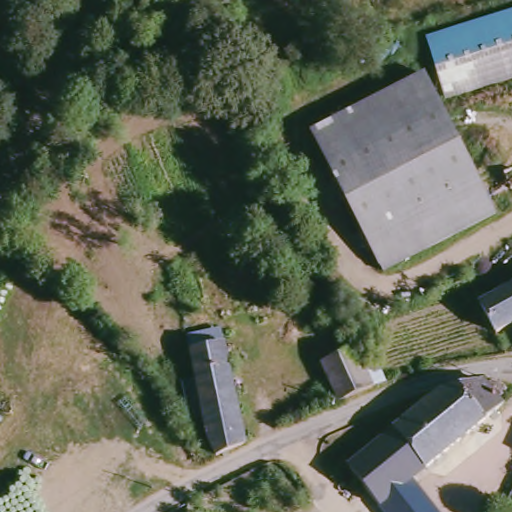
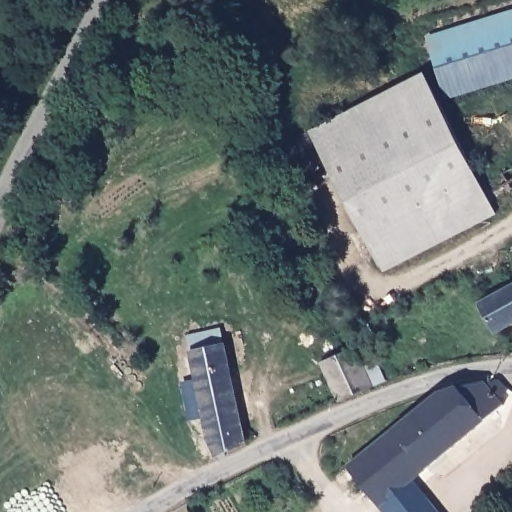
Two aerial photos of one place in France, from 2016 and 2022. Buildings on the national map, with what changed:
unchanged [(512,78),(448,97),(428,38),(512,12),(512,78)]
unchanged [(494,213),(385,269),(314,131),(424,75),(494,213)]
unchanged [(484,305),(512,291),(512,328),(501,335),(484,305)]
unchanged [(196,418),(189,383),(202,380),(196,354),(194,342),(227,335),(229,347),(250,443),(218,457),(209,415),(196,418)]
unchanged [(383,372),(386,381),(339,402),(323,363),(357,348),(360,353),(369,349),(383,372)]
unchanged [(503,402),(506,406),(418,477),(445,512),(387,512),(387,511),(346,466),(446,389),(453,387),(500,383),(507,389),(503,402)]

